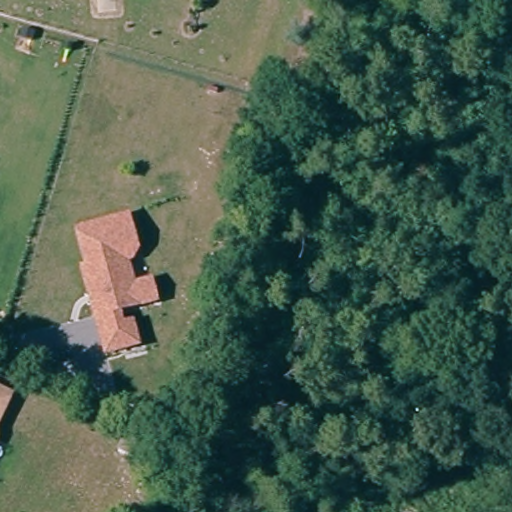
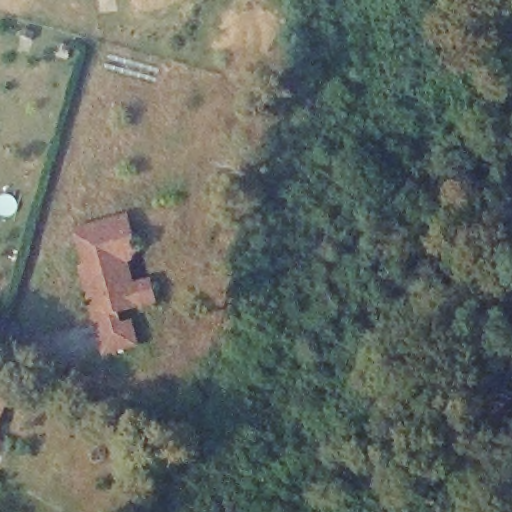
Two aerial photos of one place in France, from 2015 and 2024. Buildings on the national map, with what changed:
unchanged [(76,264),(88,261),(76,229),(131,215),(141,248),(133,262),(139,284),(151,279),(157,302),(124,314),(126,319),(136,319),(143,343),(106,354),(76,264)]
unchanged [(0,419),(0,390),(11,395),(0,419)]

